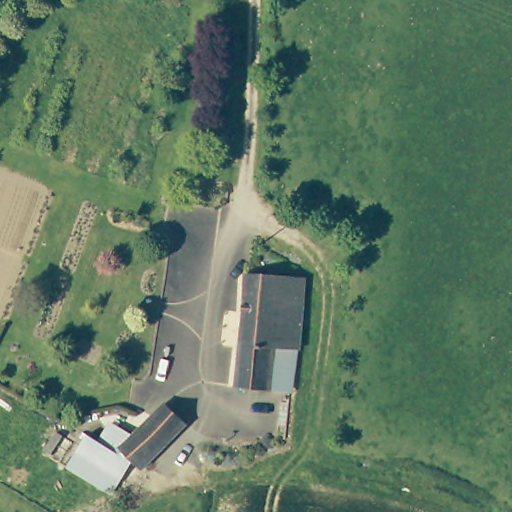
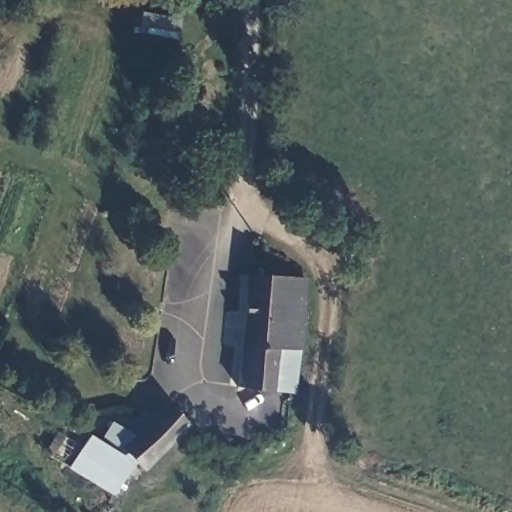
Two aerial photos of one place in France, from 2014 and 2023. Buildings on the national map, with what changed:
unchanged [(273,390),(237,387),(246,310),(248,275),(305,278),(300,348),(294,348),(291,392),(273,390)]
unchanged [(91,476),(99,465),(78,452),(90,435),(101,441),(112,422),(134,435),(165,403),(187,424),(143,470),(134,461),(122,479),(115,490),(91,476)]

